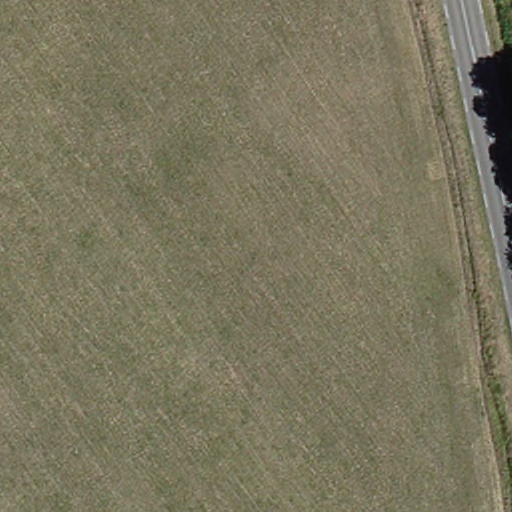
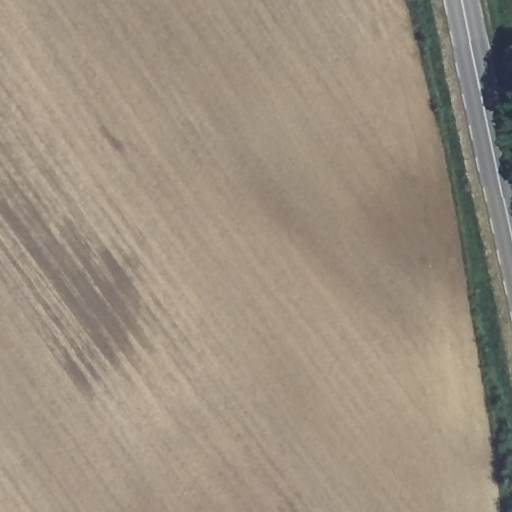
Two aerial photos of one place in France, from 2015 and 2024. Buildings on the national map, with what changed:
[]

